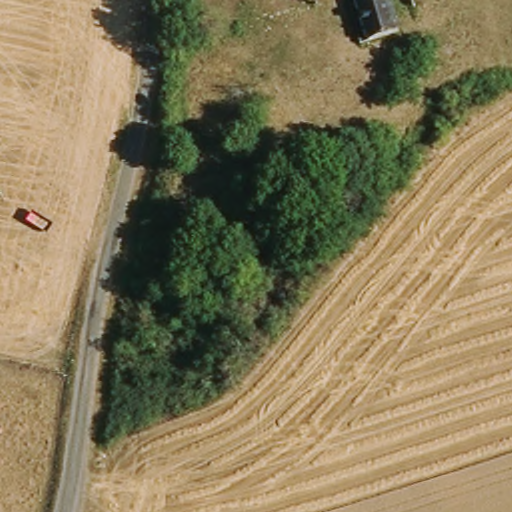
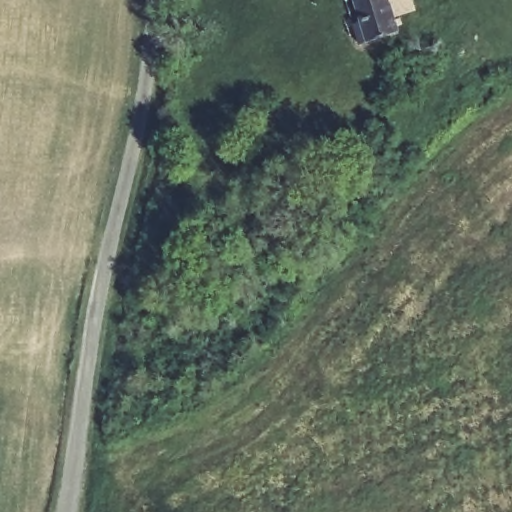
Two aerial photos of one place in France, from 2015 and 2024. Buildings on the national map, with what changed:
unchanged [(394,24),(400,46),(360,56),(345,0),(404,0),(409,20),(394,24)]

